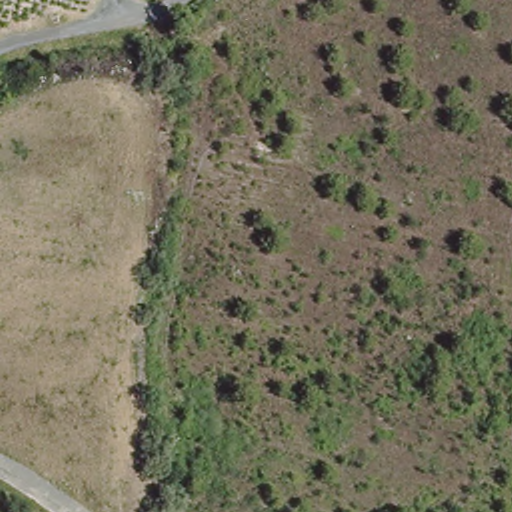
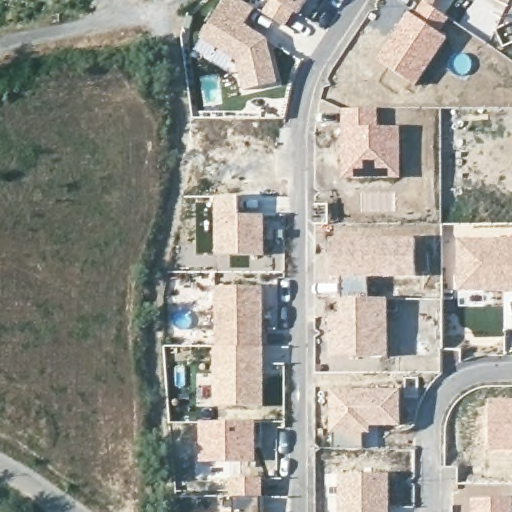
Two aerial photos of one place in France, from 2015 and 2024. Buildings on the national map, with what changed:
new [(223,0),(243,0),(255,8),(246,24),(268,39),(279,83),(241,90),(237,68),(232,60),(198,39),(223,0)]
new [(267,0),(305,0),(285,27),(260,11),(267,0)]
new [(445,14),(450,17),(440,32),(413,13),(422,0),(454,0),(445,14)]
new [(408,10),(413,13),(440,32),(448,37),(415,86),(376,59),(408,10)]
new [(378,108),(380,126),(400,126),(400,177),(341,176),(340,110),(378,108)]
new [(239,194),(240,213),(258,213),(265,213),(265,255),(214,255),(212,195),(239,194)]
new [(339,300),(340,295),(341,279),(330,279),(328,236),(381,234),(417,235),(417,277),(369,279),(370,296),(390,298),(389,356),(327,357),(329,300),(339,300)]
new [(454,235),(512,234),(512,292),(452,290),(454,235)]
new [(211,383),(215,285),(263,285),(263,407),(210,405),(211,383)]
new [(332,447),(330,432),(329,386),(402,388),(401,426),(371,426),(371,433),(364,433),(364,448),(332,447)]
new [(512,399),(512,450),(491,450),(489,400),(512,399)]
new [(197,421),(256,420),(257,461),(197,463),(197,421)]
new [(389,472),(390,512),(338,512),(337,486),(337,473),(389,472)]
new [(262,476),(262,512),(234,512),(234,498),(230,497),(230,475),(262,476)]
new [(472,512),(472,498),(512,498),(512,512),(472,512)]

